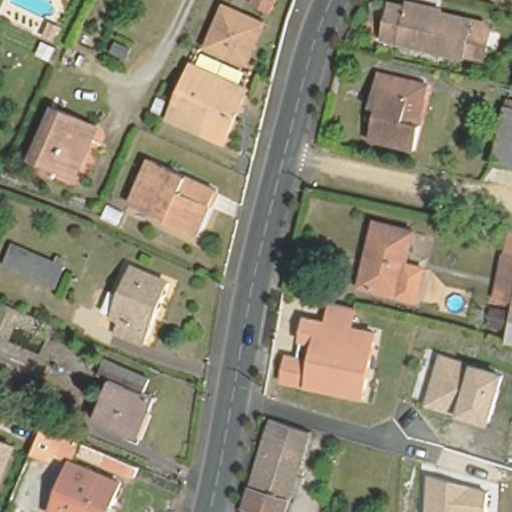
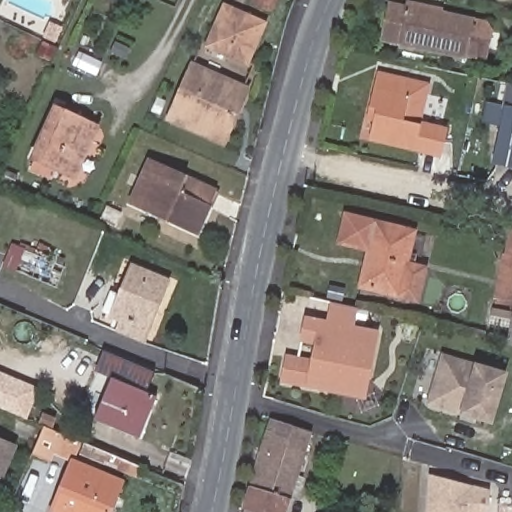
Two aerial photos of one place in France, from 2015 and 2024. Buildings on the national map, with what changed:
unchanged [(250,3),(252,0),(276,0),(270,12),(250,3)]
unchanged [(229,9),(263,22),(260,29),(247,62),(206,45),(222,6),(229,9)]
unchanged [(387,9),(405,13),(406,6),(475,21),(482,23),(488,30),(482,58),(481,61),(380,40),(387,9)]
unchanged [(238,108),(230,105),(226,114),(234,117),(224,144),(168,122),(189,68),(244,92),(238,108)]
unchanged [(418,126),(420,126),(414,150),(371,140),(377,109),(370,108),(377,74),(427,85),(418,126)]
unchanged [(28,164),(32,155),(30,154),(55,103),(94,121),(70,173),(54,165),(49,174),(28,164)]
unchanged [(495,173),(507,118),(510,108),(512,109),(512,177),(495,173)]
unchanged [(197,233),(130,205),(148,163),(215,191),(197,233)]
unchanged [(421,303),(399,297),(360,287),(376,221),(415,231),(408,261),(430,266),(421,303)]
unchanged [(499,296),(510,244),(512,244),(512,299),(499,296)]
unchanged [(65,266),(57,286),(5,267),(11,247),(65,266)]
unchanged [(143,342),(108,328),(113,316),(106,313),(125,267),(167,283),(143,342)]
unchanged [(366,400),(280,385),(285,355),(312,359),(314,344),(300,342),(305,314),(327,318),(330,300),(360,306),(356,325),(380,329),(366,400)]
unchanged [(507,344),(512,318),(512,345),(507,344)]
unchanged [(494,424),(427,406),(443,355),(510,371),(494,424)]
new [(26,420),(0,409),(0,372),(40,388),(26,420)]
unchanged [(130,432),(94,419),(111,376),(154,394),(148,411),(138,436),(130,432)]
unchanged [(246,508),(242,507),(269,416),(280,420),(309,429),(286,512),(246,512),(246,508)]
unchanged [(52,430),(45,457),(27,452),(36,423),(52,430)]
unchanged [(0,484),(0,441),(15,446),(0,484)]
unchanged [(104,512),(54,512),(52,511),(74,459),(117,478),(104,512)]
unchanged [(489,512),(427,512),(430,475),(490,489),(489,512)]

